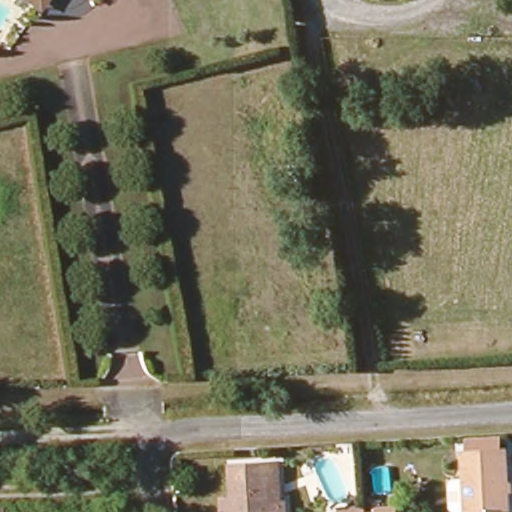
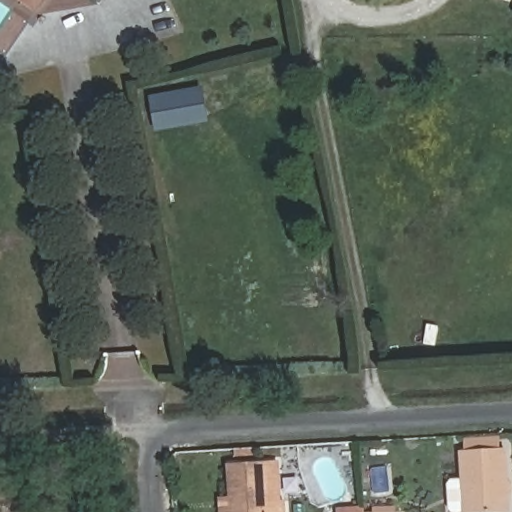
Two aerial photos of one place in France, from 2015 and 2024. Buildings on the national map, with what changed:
demolished [(27,6),(18,0),(31,0),(27,6)]
new [(37,13),(18,0),(45,0),(37,13)]
new [(210,121),(156,130),(151,97),(205,88),(210,121)]
unchanged [(452,484),(465,483),(463,453),(507,450),(511,512),(450,512),(449,488),(452,484)]
unchanged [(230,468),(267,465),(268,504),(283,504),(283,512),(232,512),(232,500),(230,468)]
unchanged [(365,509),(365,512),(340,512),(340,510),(365,509)]

